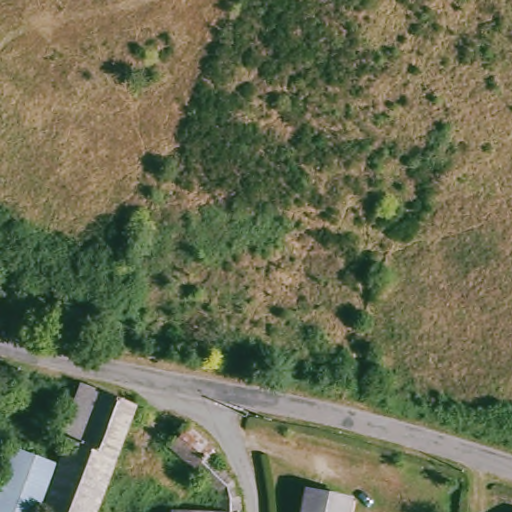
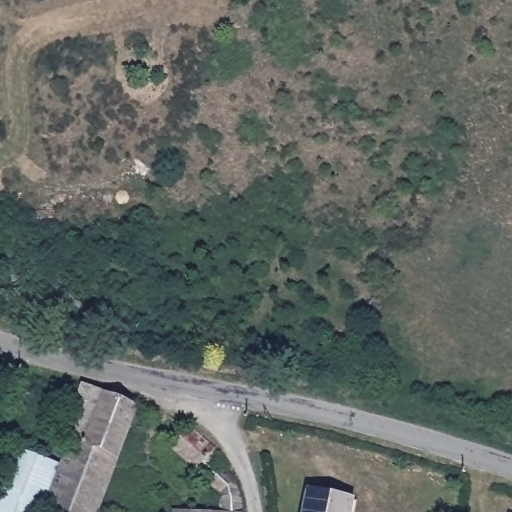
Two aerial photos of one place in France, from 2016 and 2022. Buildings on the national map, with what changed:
unchanged [(93,512),(50,512),(43,510),(68,444),(58,438),(78,384),(132,402),(93,512)]
unchanged [(236,512),(213,512),(210,492),(165,444),(178,427),(204,445),(230,485),(237,505),(236,512)]
unchanged [(0,467),(10,441),(55,458),(34,512),(0,512),(0,467)]
unchanged [(345,496),(343,512),(290,512),(296,486),(345,496)]
unchanged [(505,510),(512,511),(512,512),(505,512),(505,510)]

